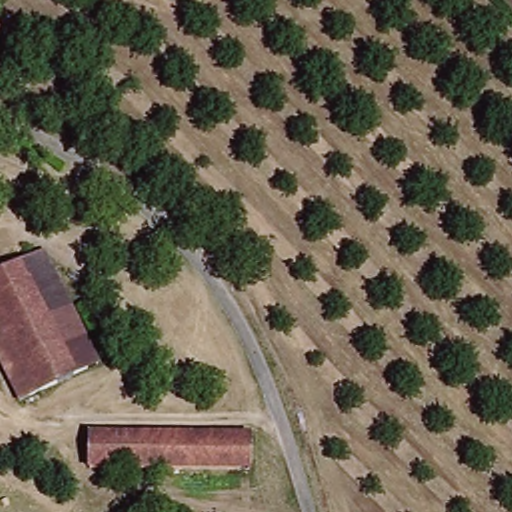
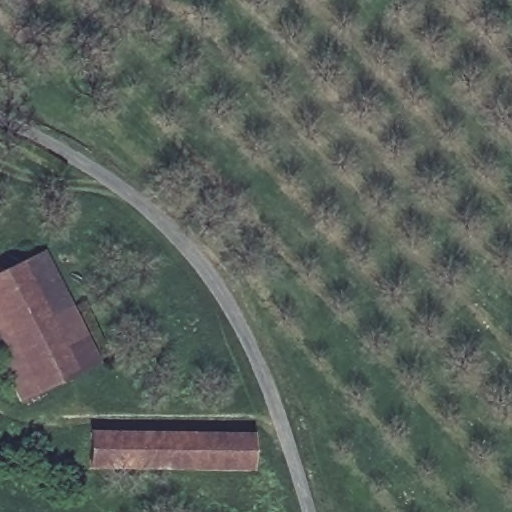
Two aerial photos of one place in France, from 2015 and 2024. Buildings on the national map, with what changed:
unchanged [(0,346),(0,278),(48,255),(98,365),(25,400),(0,346)]
unchanged [(255,440),(253,471),(101,465),(104,432),(255,440)]

